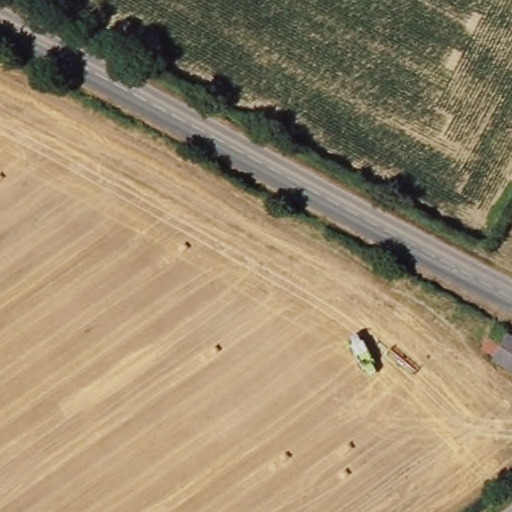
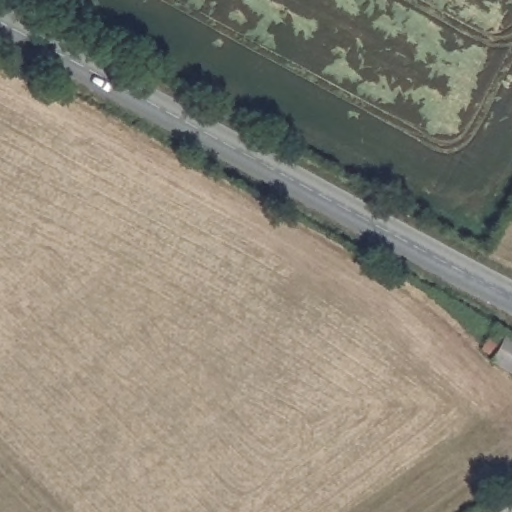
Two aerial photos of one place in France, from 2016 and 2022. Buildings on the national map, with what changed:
unchanged [(493,357),(496,351),(484,343),(496,322),(509,330),(512,331),(512,369),(493,357)]

